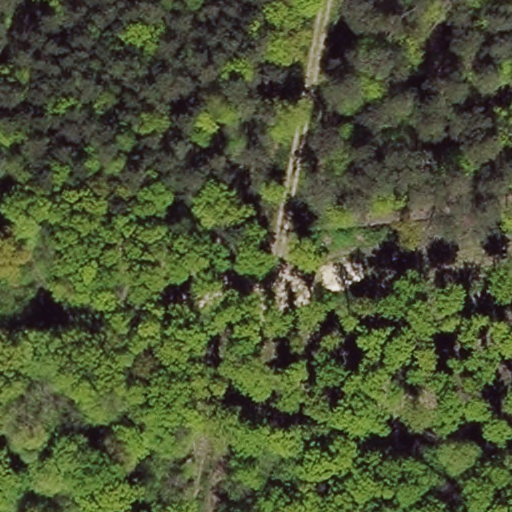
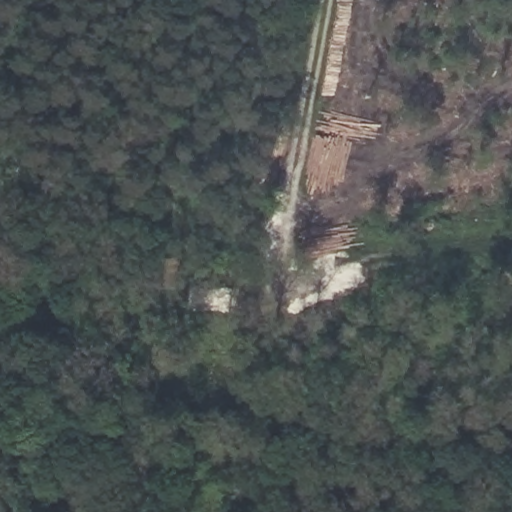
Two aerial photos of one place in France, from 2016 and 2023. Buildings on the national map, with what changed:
unchanged [(76,278),(117,273),(115,297),(78,303),(76,278)]

